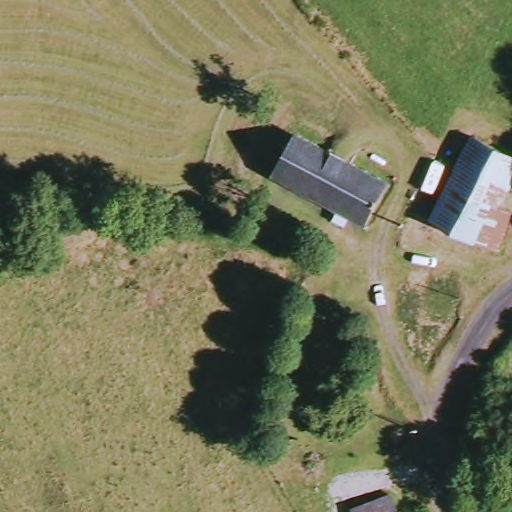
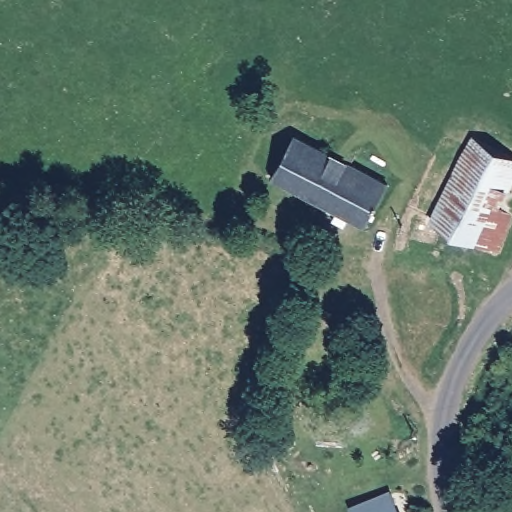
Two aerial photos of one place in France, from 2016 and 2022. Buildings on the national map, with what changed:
unchanged [(280,129),(291,136),(301,116),(335,136),(327,153),(385,187),(362,228),(269,175),(280,151),(270,142),(280,129)]
unchanged [(433,226),(471,142),(512,161),(512,176),(498,209),(512,218),(512,228),(499,257),(433,226)]
unchanged [(354,506),(394,493),(400,512),(355,512),(354,506)]

